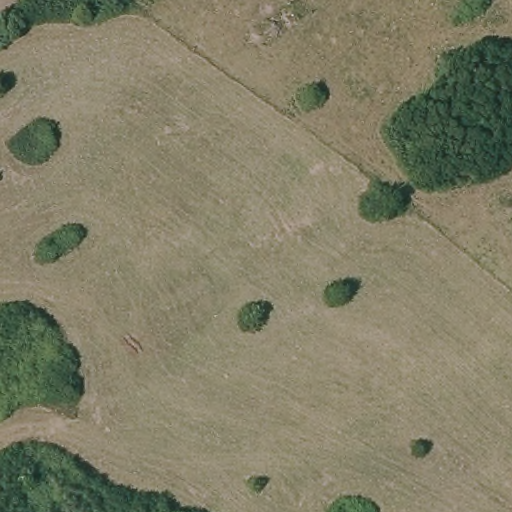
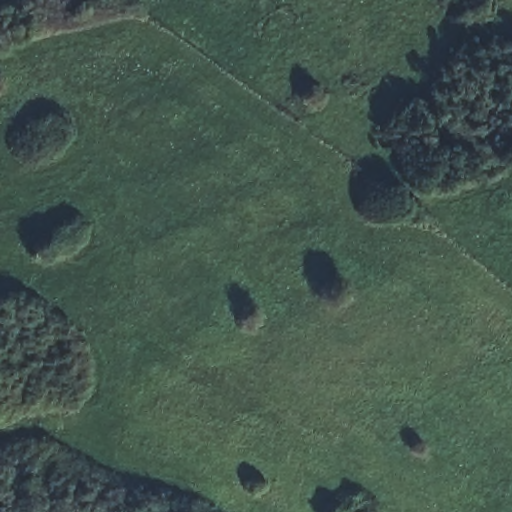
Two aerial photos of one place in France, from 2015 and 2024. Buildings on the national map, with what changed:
[]

